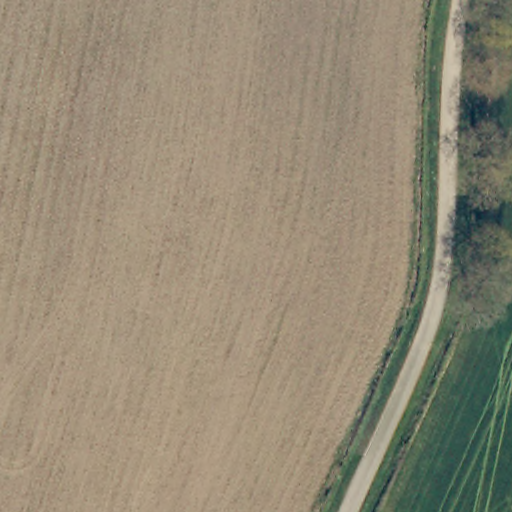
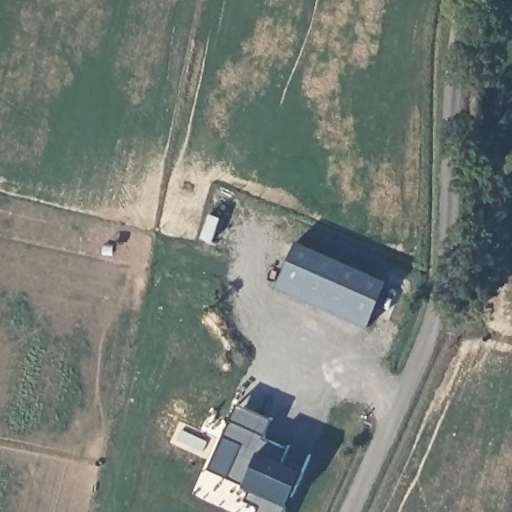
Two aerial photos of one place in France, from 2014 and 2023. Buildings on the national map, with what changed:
new [(366,326),(276,287),(298,241),(389,282),(366,326)]
new [(272,420),(265,437),(263,439),(287,450),(307,459),(301,472),(287,506),(283,504),(280,511),(281,512),(256,512),(257,508),(243,502),(249,490),(226,479),(241,446),(222,438),(229,420),(236,405),(272,420)]

